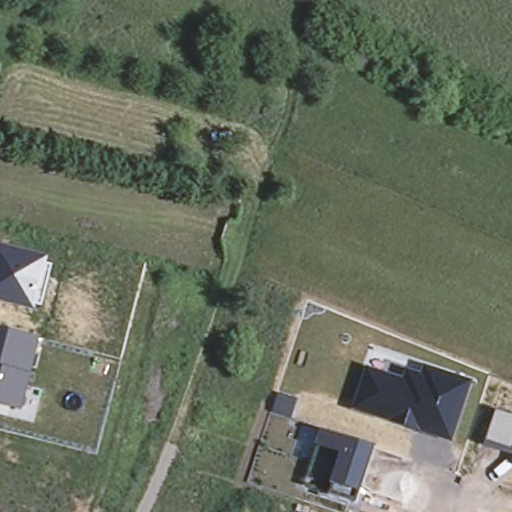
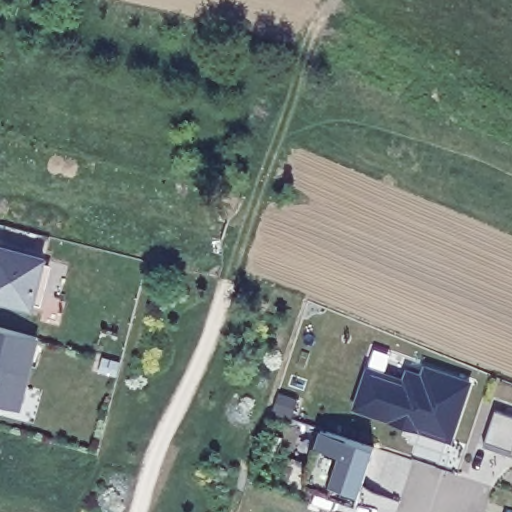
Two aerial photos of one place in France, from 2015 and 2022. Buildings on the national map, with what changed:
unchanged [(0,244),(48,256),(45,263),(51,263),(41,305),(34,302),(33,308),(0,300),(0,244)]
unchanged [(0,328),(39,338),(30,373),(21,410),(0,403),(0,328)]
unchanged [(353,406),(364,364),(404,376),(406,367),(423,372),(424,365),(472,380),(452,441),(353,406)]
unchanged [(487,440),(496,410),(512,415),(512,449),(487,440)]
unchanged [(359,491),(354,501),(329,492),(332,483),(328,482),(306,476),(316,444),(321,430),(374,446),(359,491)]

